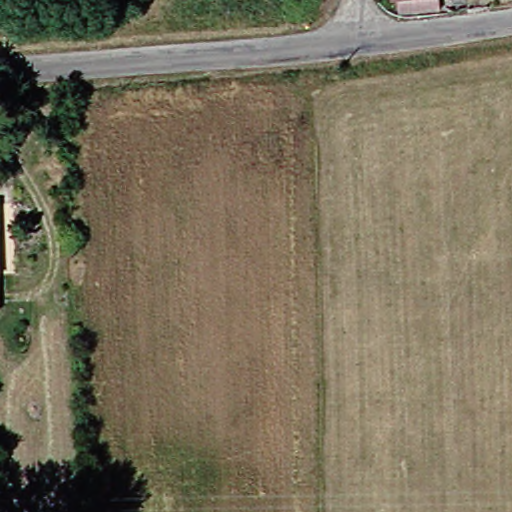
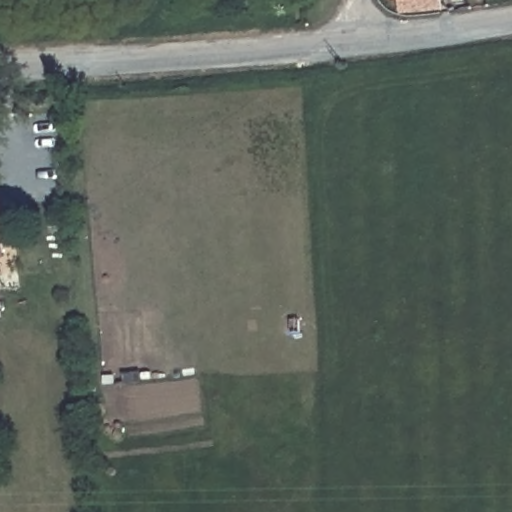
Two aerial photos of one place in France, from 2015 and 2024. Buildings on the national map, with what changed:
unchanged [(416,13),(413,9),(395,10),(394,0),(435,0),(436,12),(416,13)]
unchanged [(1,229),(0,229),(0,214),(1,229)]

